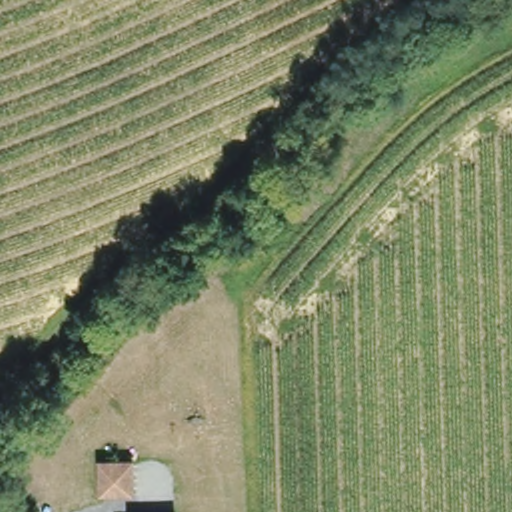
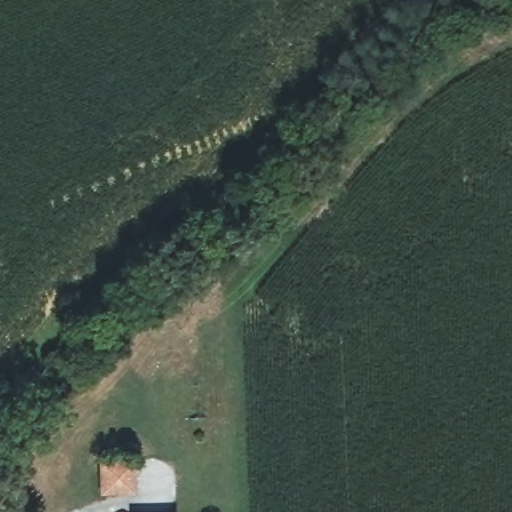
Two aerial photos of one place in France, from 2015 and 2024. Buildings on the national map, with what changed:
unchanged [(136,462),(135,492),(105,491),(104,463),(136,462)]

